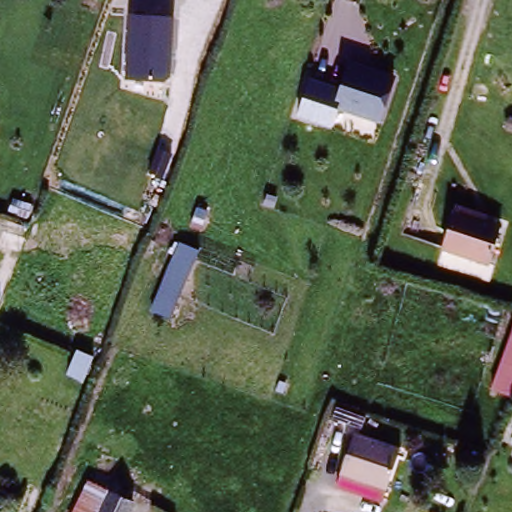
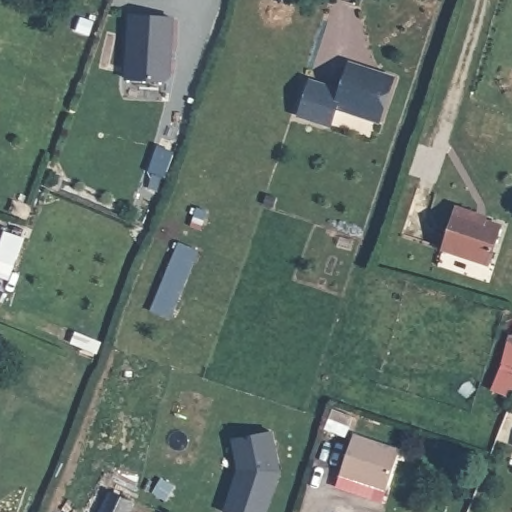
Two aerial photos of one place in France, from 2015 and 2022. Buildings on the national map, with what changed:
unchanged [(175,18),(171,78),(165,82),(125,78),(130,15),(175,18)]
unchanged [(394,74),(377,121),(334,108),(328,129),(295,117),(308,74),(340,81),(348,56),(394,74)]
unchanged [(445,245),(458,208),(498,223),(493,239),(485,260),(445,245)]
unchanged [(147,313),(172,240),(200,248),(170,318),(147,313)]
unchanged [(512,339),(512,397),(492,390),(512,339)]
new [(238,473),(237,466),(232,443),(272,435),(280,475),(268,512),(225,512),(238,473)]
unchanged [(355,438),(399,454),(387,490),(342,474),(355,438)]

